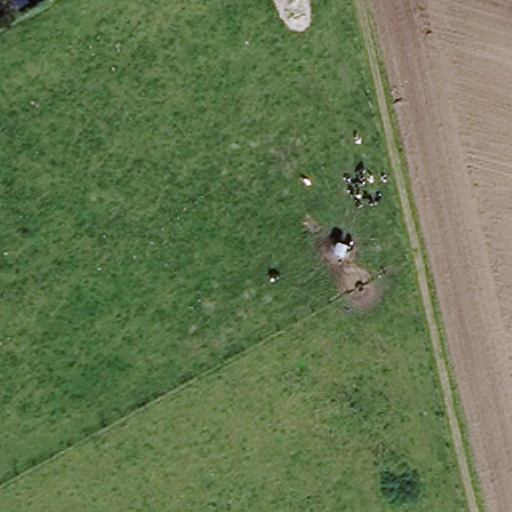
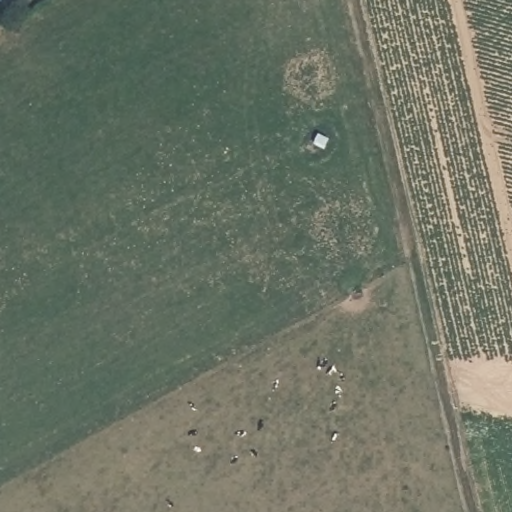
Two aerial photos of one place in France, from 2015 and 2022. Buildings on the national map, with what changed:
[]

